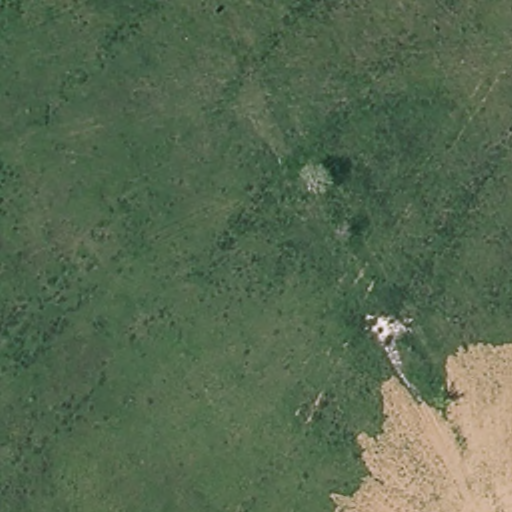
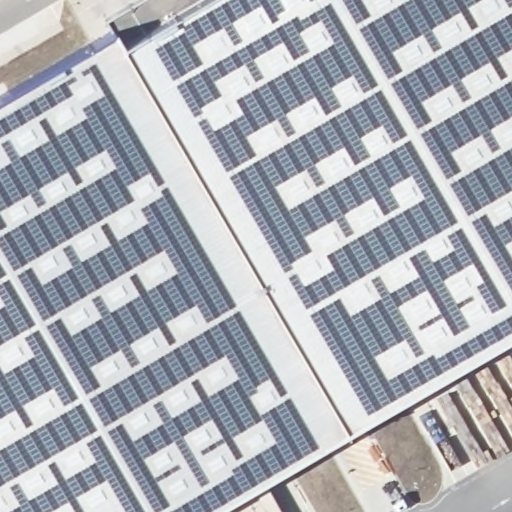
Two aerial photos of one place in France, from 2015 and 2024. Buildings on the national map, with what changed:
new [(202,512),(0,512),(0,96),(113,31),(105,20),(138,0),(512,0),(512,333),(202,512)]

